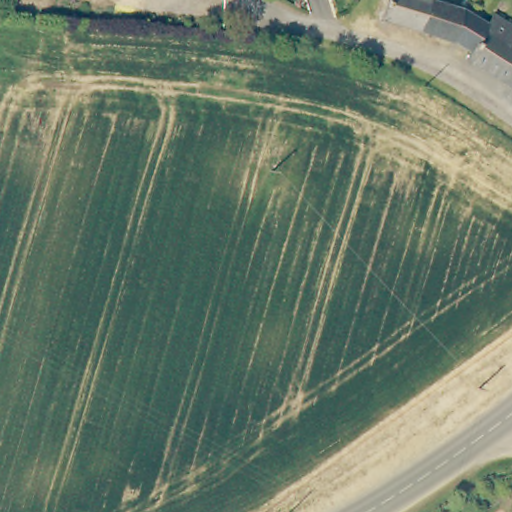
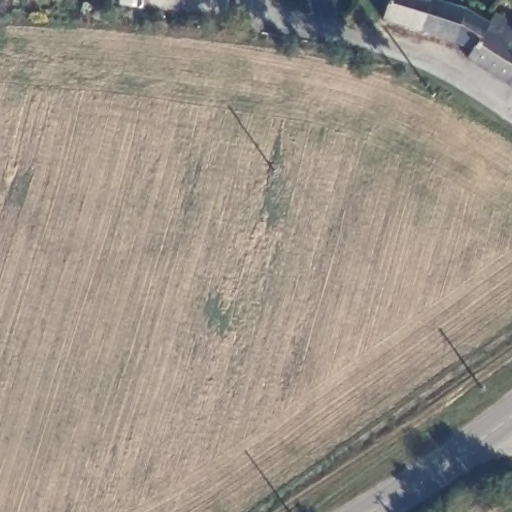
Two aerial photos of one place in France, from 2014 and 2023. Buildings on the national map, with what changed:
unchanged [(138,0),(152,0),(151,5),(138,0)]
unchanged [(465,59),(471,49),(435,33),(387,20),(379,15),(383,0),(435,0),(465,10),(487,19),(490,12),(512,24),(512,86),(465,59)]

